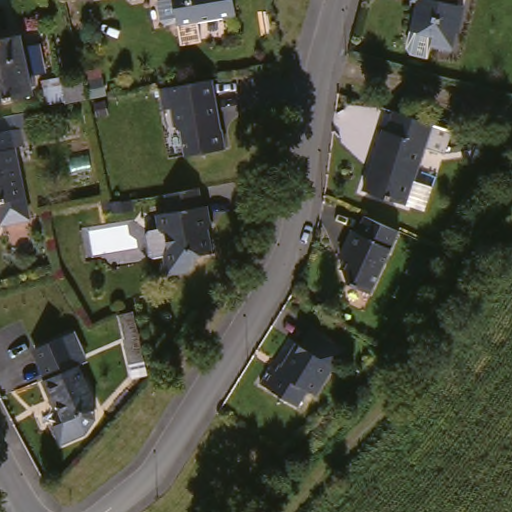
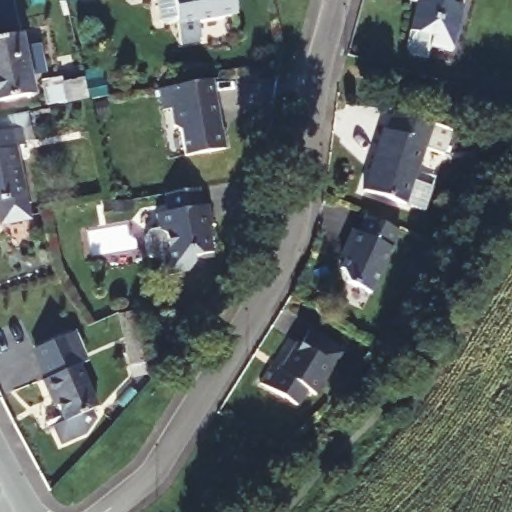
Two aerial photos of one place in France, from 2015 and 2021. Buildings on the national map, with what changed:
unchanged [(238,16),(179,26),(175,0),(235,0),(238,16)]
unchanged [(450,6),(458,7),(451,34),(449,34),(445,52),(443,51),(424,46),(426,37),(404,31),(411,2),(409,2),(409,0),(451,0),(450,6)]
unchanged [(28,95),(0,100),(0,41),(14,39),(28,95)]
unchanged [(86,80),(91,102),(68,107),(63,85),(86,80)]
unchanged [(211,81),(220,133),(222,132),(226,152),(186,159),(181,135),(174,130),(171,113),(162,114),(158,90),(211,81)]
unchanged [(0,115),(13,112),(17,129),(19,128),(22,147),(13,149),(23,198),(27,214),(28,219),(0,225),(0,115)]
unchanged [(424,212),(404,206),(362,192),(382,131),(387,132),(393,112),(450,131),(442,156),(423,150),(413,182),(432,188),(424,212)]
unchanged [(204,218),(214,224),(208,231),(212,255),(193,258),(194,265),(188,273),(166,277),(163,257),(168,250),(166,236),(159,231),(156,216),(168,214),(165,196),(199,190),(204,218)]
unchanged [(394,231),(366,293),(343,283),(340,269),(337,268),(345,252),(339,249),(347,233),(349,230),(354,232),(362,215),(394,231)]
unchanged [(130,349),(123,317),(137,313),(145,346),(149,362),(134,365),(130,349)]
unchanged [(88,412),(93,423),(84,434),(59,445),(51,427),(64,421),(56,404),(49,408),(38,384),(42,382),(28,351),(35,348),(68,334),(74,348),(81,364),(73,368),(93,410),(88,412)]
unchanged [(279,377),(297,348),(301,350),(310,335),(344,355),(316,400),(307,395),(298,411),(261,389),(271,372),(279,377)]

